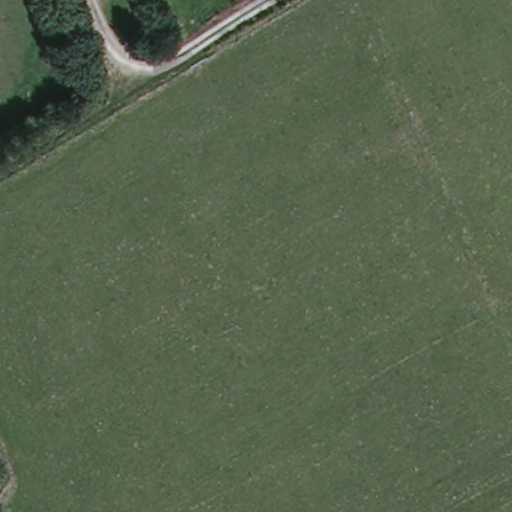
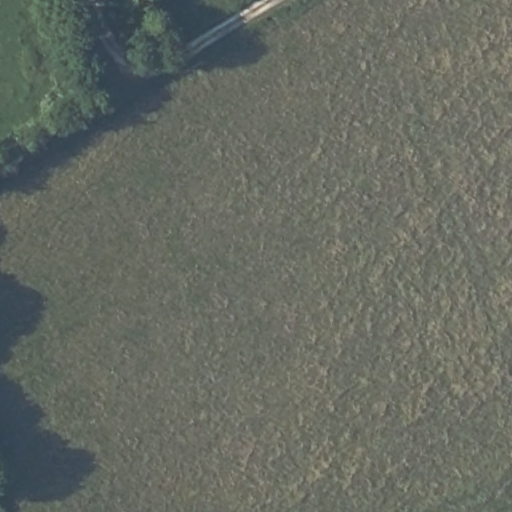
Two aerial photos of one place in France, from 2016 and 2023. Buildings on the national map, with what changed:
[]

